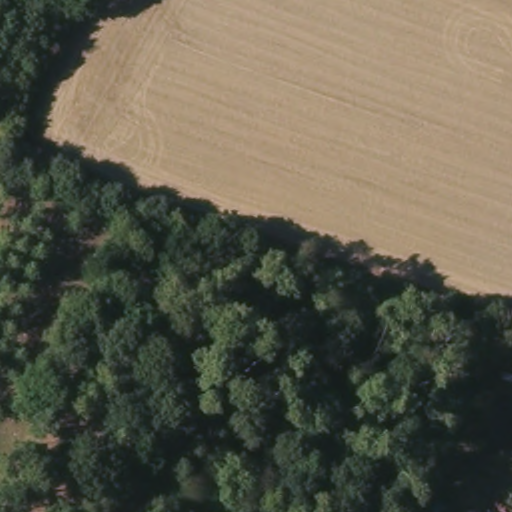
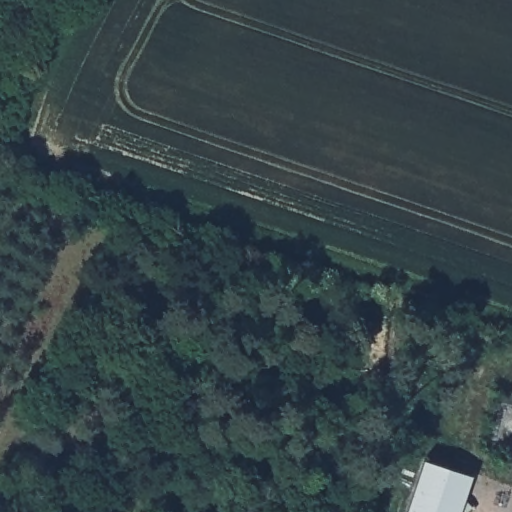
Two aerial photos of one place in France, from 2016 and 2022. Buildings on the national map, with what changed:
new [(471,476),(459,512),(406,512),(424,460),(471,476)]

